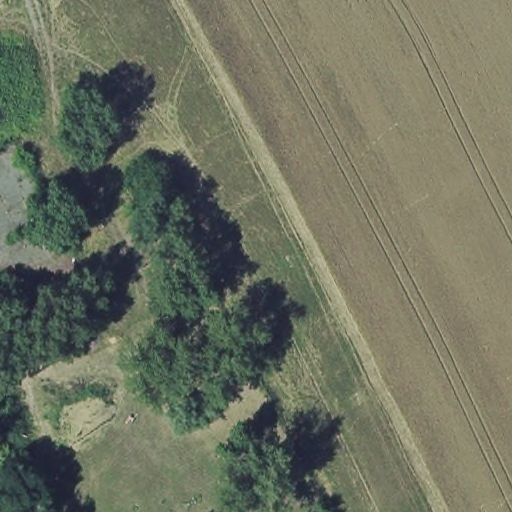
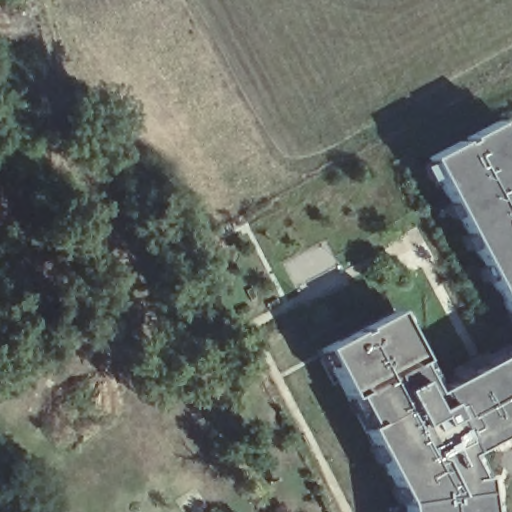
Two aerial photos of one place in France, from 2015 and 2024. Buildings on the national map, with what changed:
new [(436,155),(470,138),(470,140),(477,138),(475,135),(509,118),(512,124),(512,301),(436,155)]
new [(510,431),(473,452),(485,475),(490,475),(496,512),(414,512),(412,499),(373,425),(377,423),(362,393),(357,395),(332,345),(362,329),(364,331),(372,328),(370,325),(402,308),(428,355),(425,357),(441,390),(512,351),(512,434),(510,431)]

